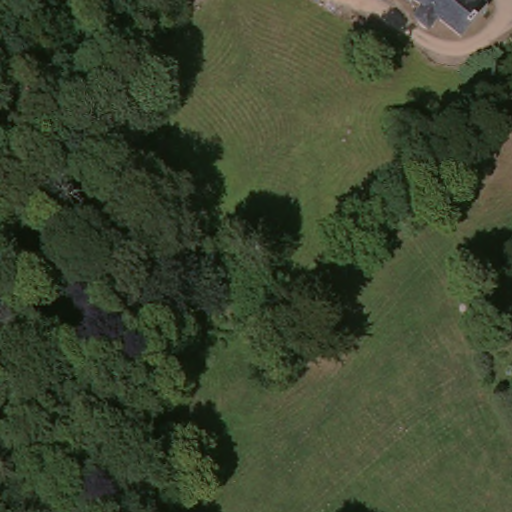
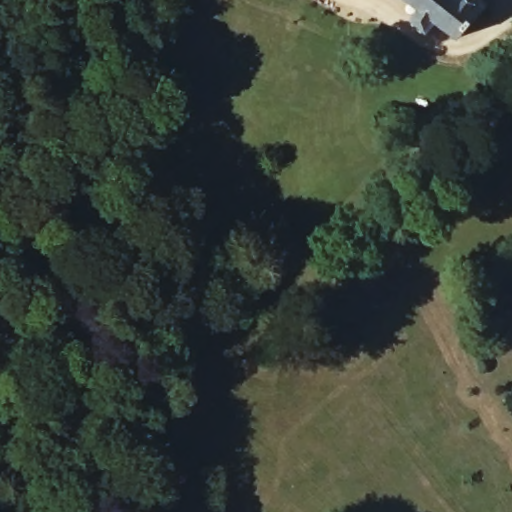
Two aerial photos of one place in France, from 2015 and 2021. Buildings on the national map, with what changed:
unchanged [(489,9),(460,41),(437,24),(430,26),(423,25),(420,19),(421,11),(406,0),(478,0),(489,9)]

